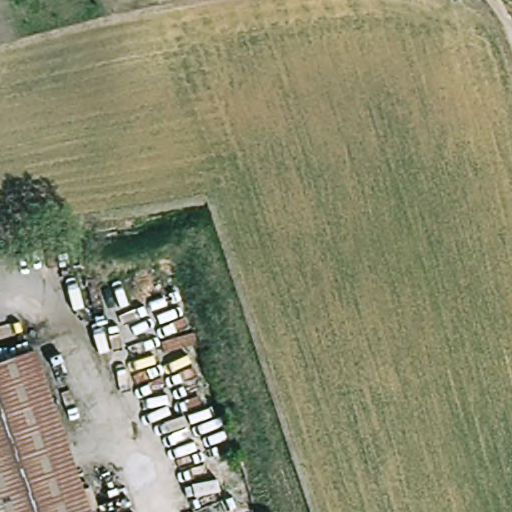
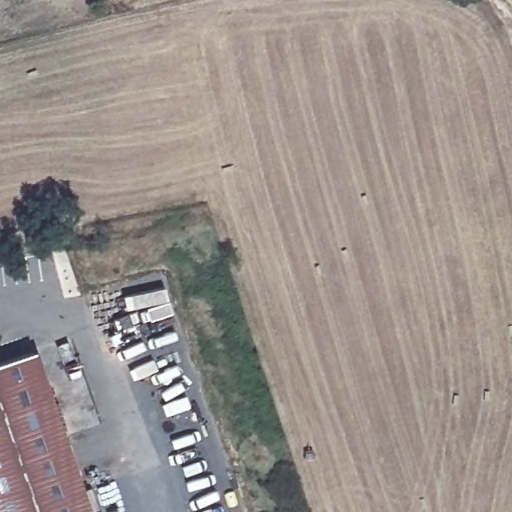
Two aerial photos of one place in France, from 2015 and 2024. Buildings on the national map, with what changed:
unchanged [(94,512),(0,512),(0,365),(38,352),(94,512)]

